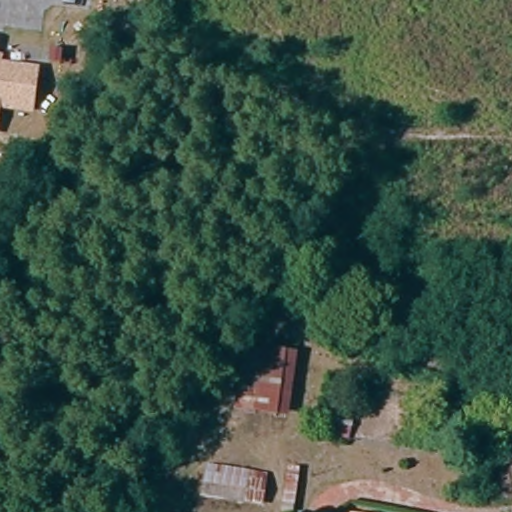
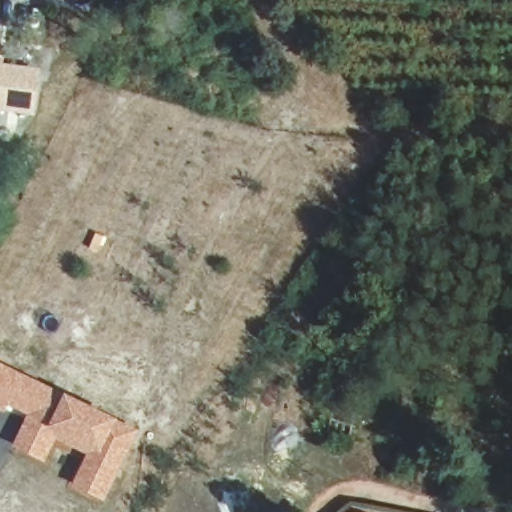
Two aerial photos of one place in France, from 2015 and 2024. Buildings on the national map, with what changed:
unchanged [(2,60),(1,71),(38,75),(34,115),(0,111),(0,60),(2,60)]
new [(140,430),(104,504),(68,487),(85,455),(55,441),(45,464),(10,446),(25,416),(8,407),(4,414),(0,412),(0,362),(140,430)]

